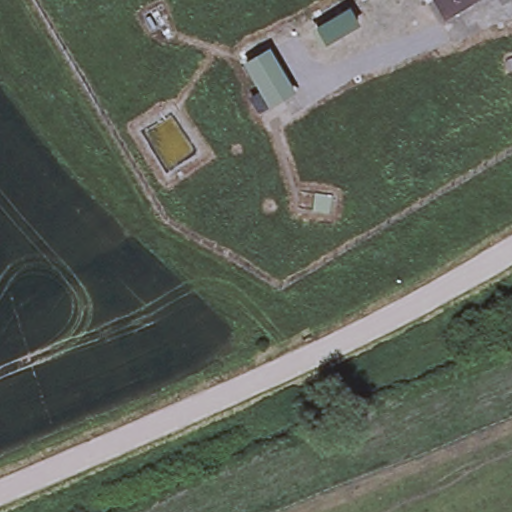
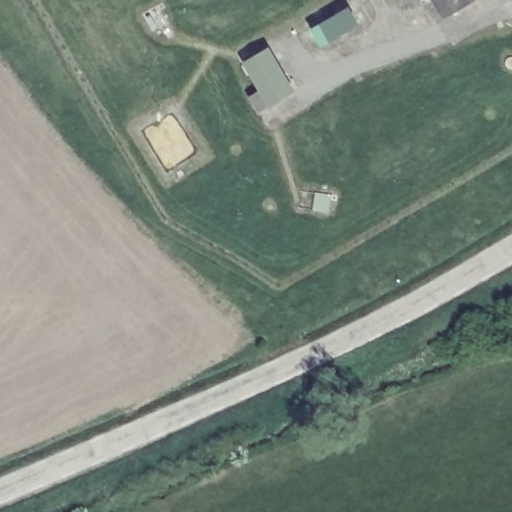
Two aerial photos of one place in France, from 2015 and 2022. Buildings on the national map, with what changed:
unchanged [(443,15),(434,0),(469,0),(443,15)]
unchanged [(360,23),(323,46),(312,29),(348,7),(360,23)]
unchanged [(243,61),(269,45),(296,92),(269,107),(258,112),(248,96),(260,91),(243,61)]

